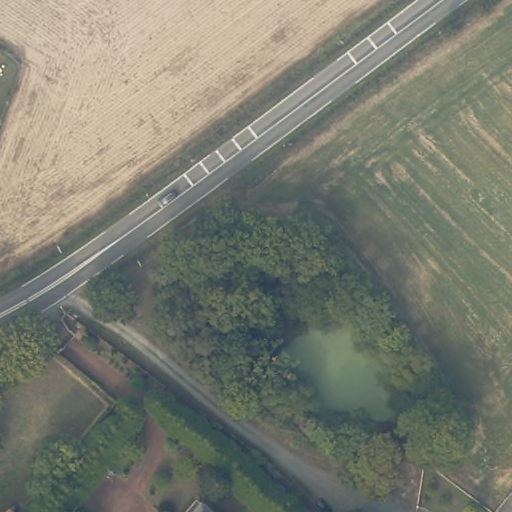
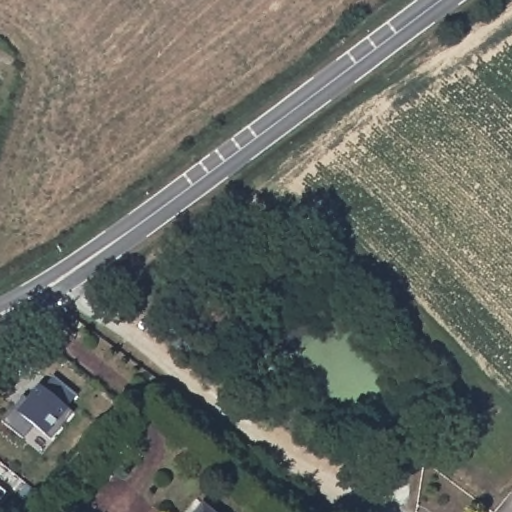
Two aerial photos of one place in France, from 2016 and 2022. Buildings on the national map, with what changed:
new [(50,438),(44,433),(32,422),(22,437),(2,420),(23,394),(27,397),(39,384),(67,406),(72,412),(50,438)]
unchanged [(212,512),(195,512),(202,503),(212,512)]

